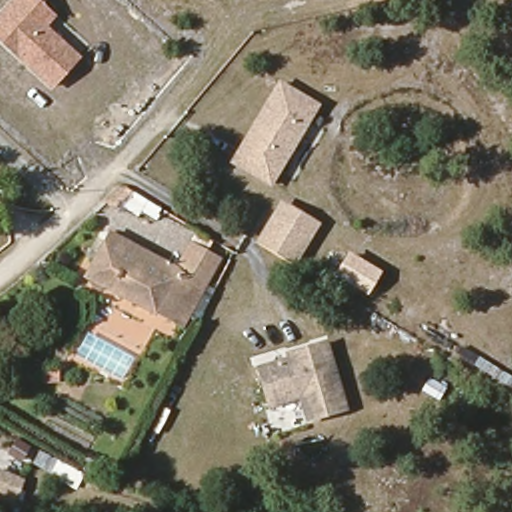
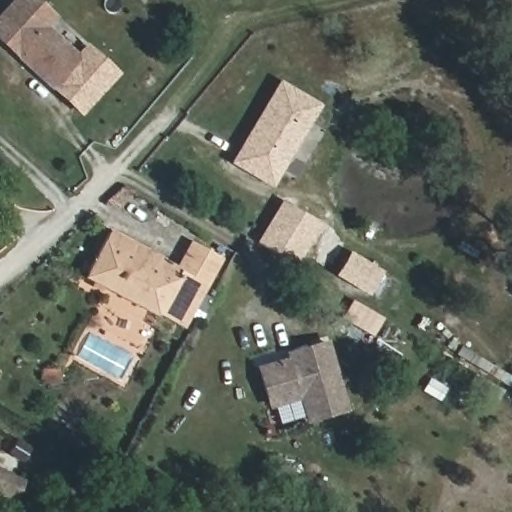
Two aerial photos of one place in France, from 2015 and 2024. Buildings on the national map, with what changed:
unchanged [(42,0),(61,16),(49,27),(84,58),(54,91),(0,43),(0,15),(14,0),(42,0)]
new [(84,58),(77,52),(86,42),(120,74),(81,116),(54,91),(84,58)]
unchanged [(267,183),(231,160),(233,157),(257,119),(278,85),(280,80),(282,80),(295,88),(319,102),(267,183)]
unchanged [(277,212),(283,201),(317,223),(310,234),(293,260),(293,261),(259,240),(260,240),(277,212)]
unchanged [(156,317),(86,280),(111,234),(179,270),(156,317)]
unchanged [(156,317),(179,270),(193,249),(207,254),(219,263),(183,331),(176,328),(156,317)]
unchanged [(367,296),(334,275),(349,250),(383,271),(367,296)]
unchanged [(345,407),(308,417),(302,393),(270,401),(261,365),(292,356),(291,350),(328,340),(345,407)]
unchanged [(437,407),(416,393),(431,370),(451,382),(437,407)]
unchanged [(0,505),(0,469),(23,477),(11,510),(0,505)]

